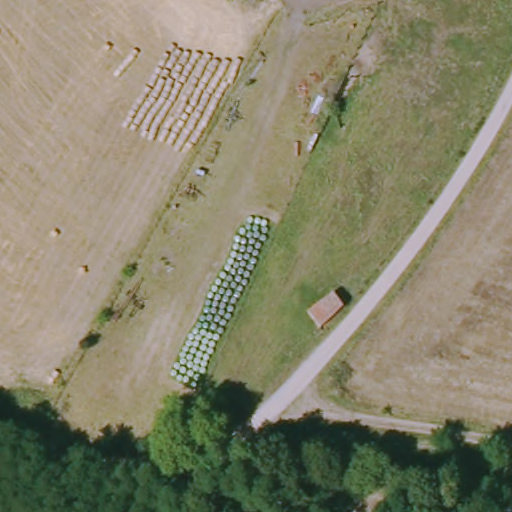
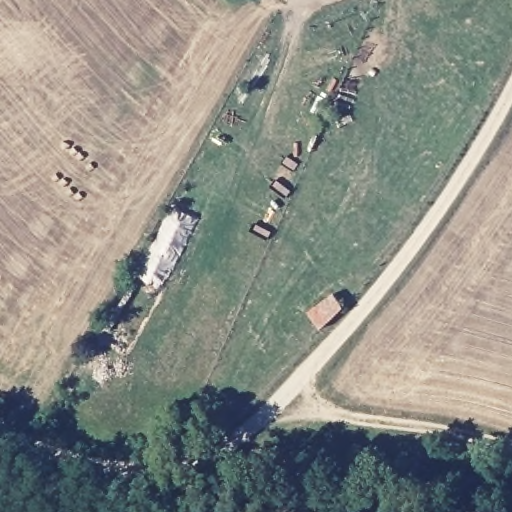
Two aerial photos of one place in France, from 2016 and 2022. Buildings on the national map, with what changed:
unchanged [(318,331),(306,316),(330,297),(339,310),(318,331)]

